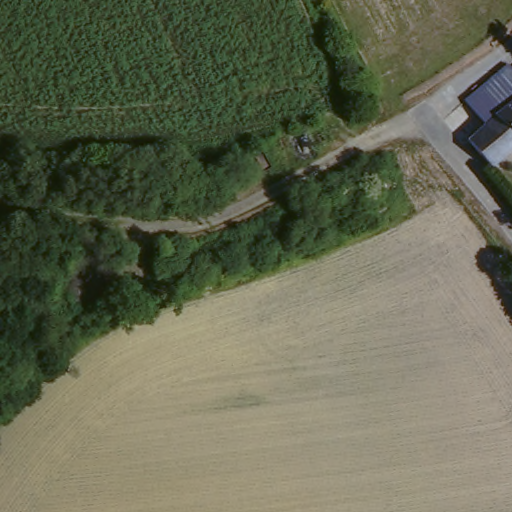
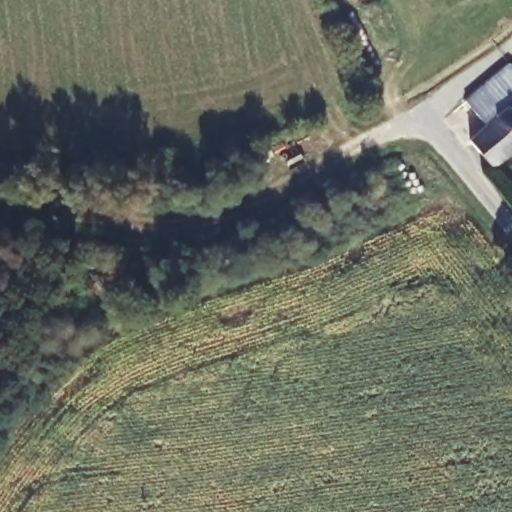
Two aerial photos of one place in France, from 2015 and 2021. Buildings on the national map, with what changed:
unchanged [(485,126),(465,101),(510,64),(512,67),(512,149),(490,167),(468,140),(485,126)]

